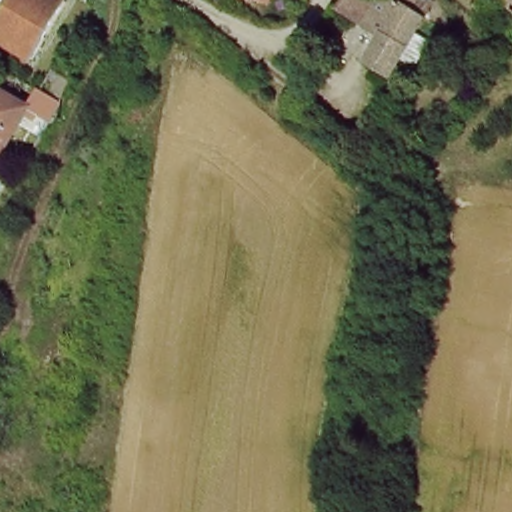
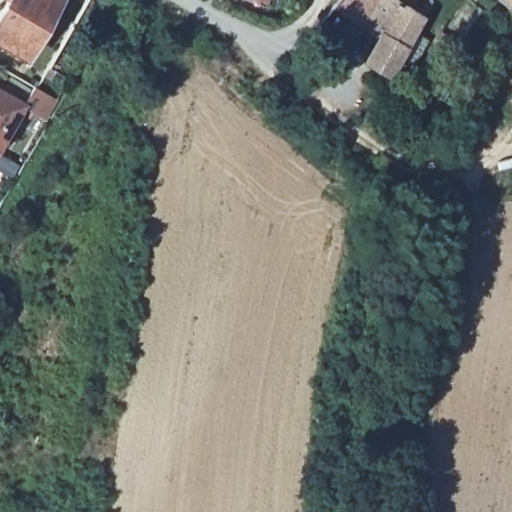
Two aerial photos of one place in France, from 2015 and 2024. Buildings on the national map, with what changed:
unchanged [(0,37),(0,3),(2,0),(67,0),(35,57),(0,37)]
unchanged [(399,52),(389,70),(366,57),(381,30),(333,3),(336,0),(428,0),(413,27),(427,35),(413,61),(399,52)]
unchanged [(53,100),(42,118),(20,105),(31,87),(32,88),(53,100)]
unchanged [(0,94),(20,105),(0,140),(0,94)]

